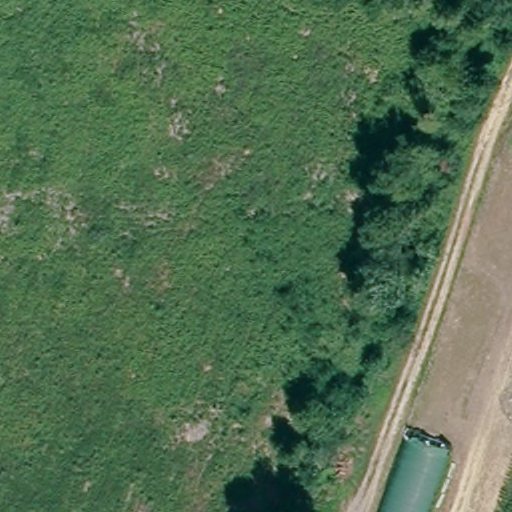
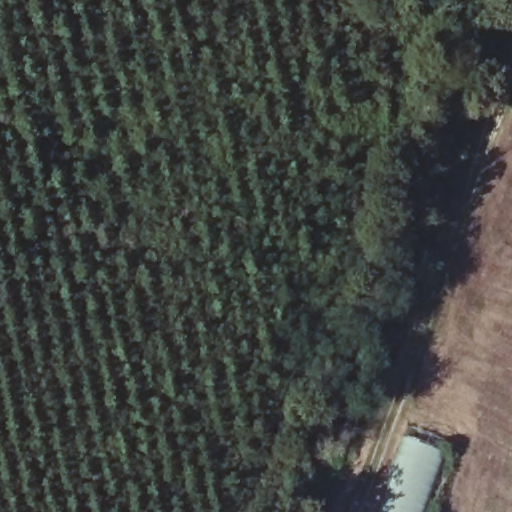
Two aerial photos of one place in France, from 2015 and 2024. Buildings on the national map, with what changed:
unchanged [(429,512),(386,512),(415,434),(455,446),(429,512)]

